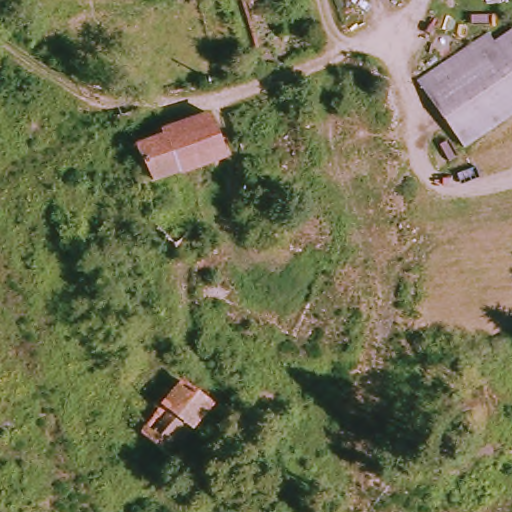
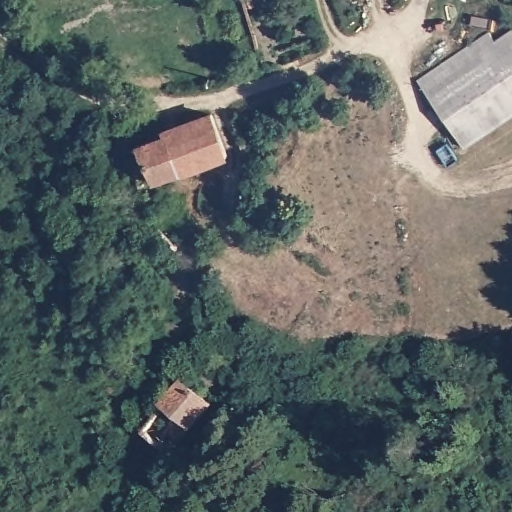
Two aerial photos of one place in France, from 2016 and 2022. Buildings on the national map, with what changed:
unchanged [(488,36),(497,45),(512,35),(512,125),(476,155),(421,91),(488,36)]
unchanged [(179,130),(175,125),(221,115),(238,156),(160,180),(156,168),(148,167),(142,156),(149,150),(147,141),(168,133),(179,130)]
unchanged [(192,381),(217,405),(179,454),(151,432),(164,413),(192,381)]
unchanged [(216,495),(230,509),(228,512),(204,512),(211,502),(216,495)]

